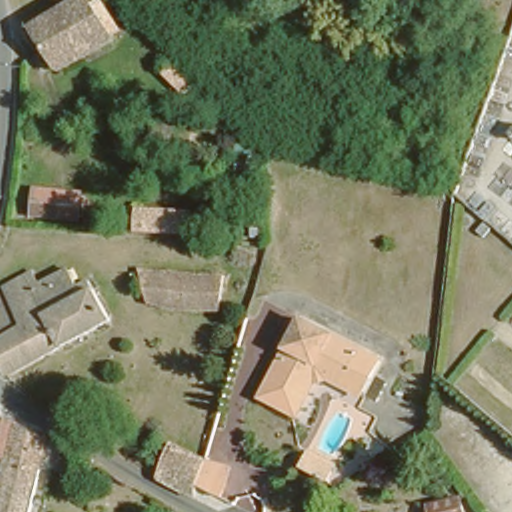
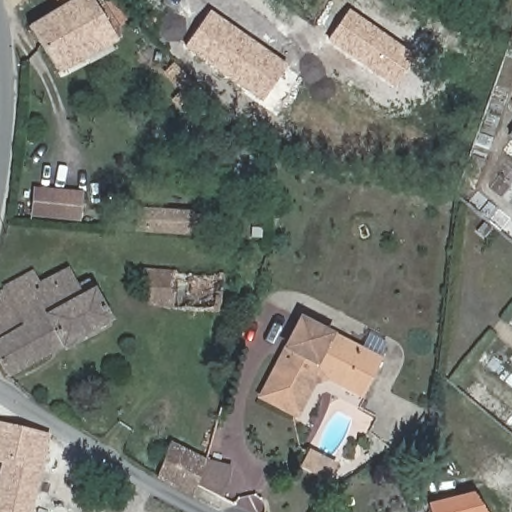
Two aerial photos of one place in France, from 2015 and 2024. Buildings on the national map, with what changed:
unchanged [(112,40),(53,72),(45,59),(26,26),(29,24),(65,4),(73,0),(89,0),(112,40)]
unchanged [(65,4),(59,0),(73,0),(65,4)]
new [(210,10),(288,65),(262,101),(184,49),(210,10)]
new [(350,10),(416,55),(417,56),(395,88),(328,41),(350,10)]
unchanged [(131,48),(118,57),(112,47),(125,38),(131,48)]
unchanged [(80,191),(77,221),(27,214),(32,186),(80,191)]
unchanged [(193,205),(191,230),(137,227),(137,202),(193,205)]
unchanged [(26,270),(35,284),(70,265),(84,290),(97,283),(114,316),(9,371),(0,353),(0,285),(4,282),(26,270)]
unchanged [(222,272),(216,306),(164,303),(143,294),(142,267),(222,272)]
unchanged [(382,355),(362,390),(330,372),(313,377),(297,407),(262,388),(305,311),(382,355)]
unchanged [(0,452),(0,418),(10,420),(10,423),(44,431),(32,488),(27,512),(0,512),(0,468),(3,453),(0,452)]
unchanged [(196,486),(195,490),(194,493),(156,473),(157,469),(169,436),(206,455),(226,462),(224,480),(221,493),(196,486)]
unchanged [(333,462),(322,481),(297,468),(306,448),(333,462)]
unchanged [(460,495),(464,512),(433,512),(431,502),(460,495)]

